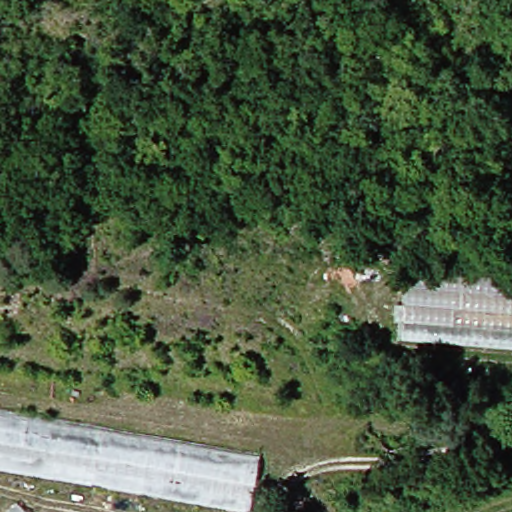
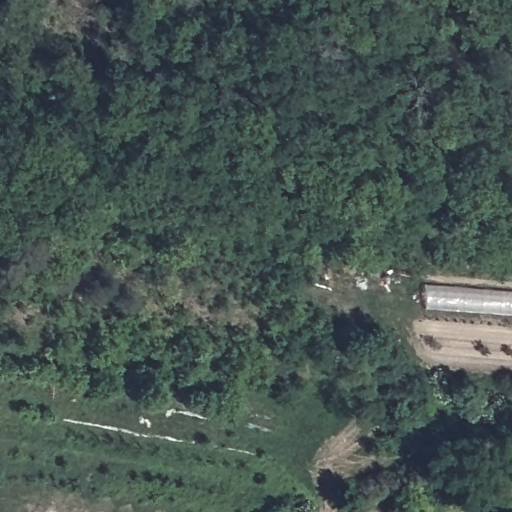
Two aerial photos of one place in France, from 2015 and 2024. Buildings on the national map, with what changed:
demolished [(415,266),(512,274),(512,349),(412,340),(415,266)]
demolished [(261,508),(0,466),(0,412),(269,453),(261,508)]

